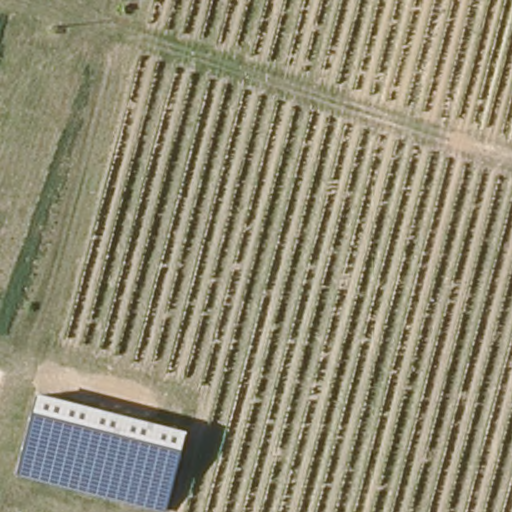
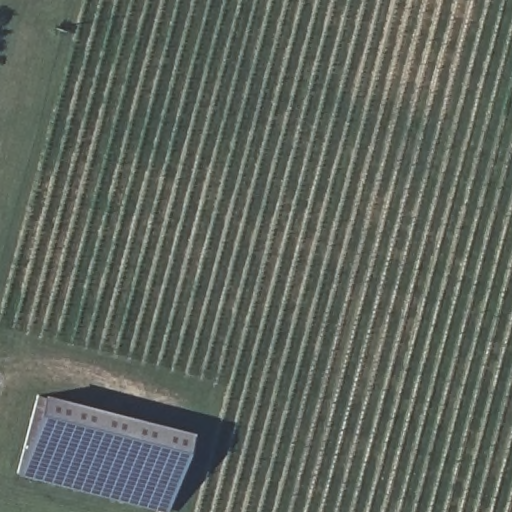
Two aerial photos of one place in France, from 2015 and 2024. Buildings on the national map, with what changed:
unchanged [(20,477),(37,396),(186,433),(165,512),(20,477)]

